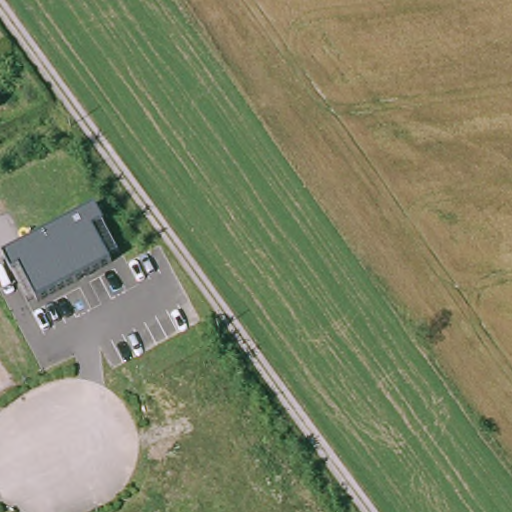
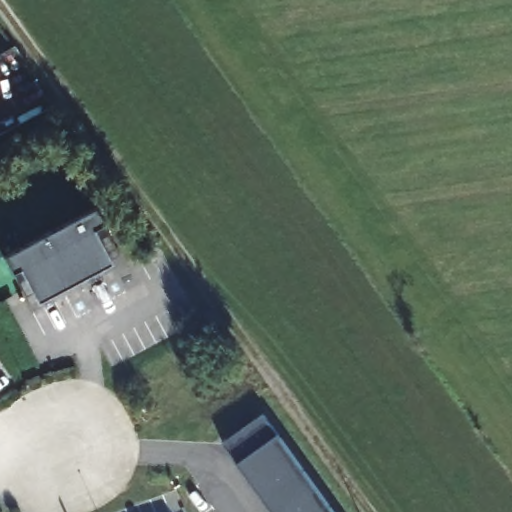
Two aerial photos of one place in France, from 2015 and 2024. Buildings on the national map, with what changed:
unchanged [(12,272),(5,256),(95,209),(103,225),(118,255),(108,259),(111,263),(37,301),(35,298),(27,303),(12,272)]
new [(332,512),(273,512),(225,445),(264,417),(277,435),(332,512)]

